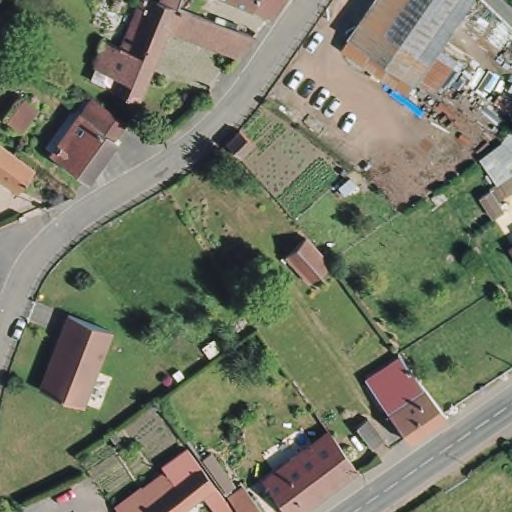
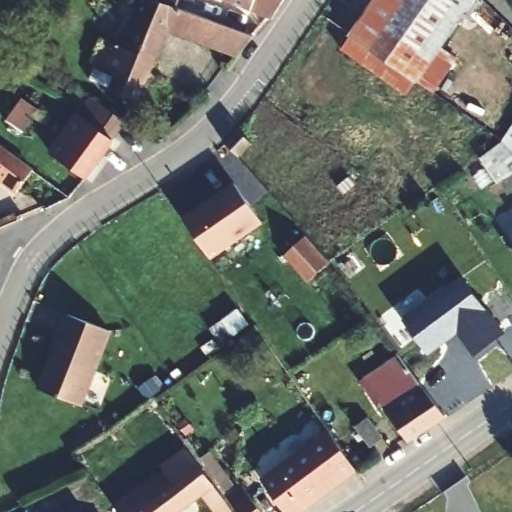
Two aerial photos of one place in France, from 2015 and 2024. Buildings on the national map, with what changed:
unchanged [(141,2),(151,5),(153,0),(172,0),(168,11),(245,39),(251,41),(236,61),(158,34),(128,105),(102,95),(109,78),(85,68),(95,45),(118,55),(141,2)]
unchanged [(264,21),(215,0),(277,0),(269,12),(264,21)]
unchanged [(368,48),(348,34),(373,0),(467,0),(474,5),(441,49),(457,62),(432,95),(416,83),(368,48)]
unchanged [(81,100),(118,124),(95,157),(59,132),(81,100)]
unchanged [(0,127),(0,125),(15,101),(29,111),(13,135),(0,127)]
unchanged [(32,152),(16,176),(0,165),(0,131),(32,152)]
unchanged [(43,155),(59,132),(95,157),(80,180),(43,155)]
unchanged [(233,132),(246,147),(231,159),(218,145),(233,132)]
unchanged [(512,137),(512,194),(504,199),(478,158),(512,137)]
new [(209,256),(184,221),(188,218),(186,215),(234,182),(261,221),(209,256)]
unchanged [(329,263),(308,280),(286,254),(306,236),(329,263)]
unchanged [(512,245),(512,248),(511,246),(512,245)]
new [(505,333),(474,356),(458,332),(429,355),(403,320),(461,278),(505,333)]
unchanged [(73,314),(115,333),(82,406),(41,387),(73,314)]
unchanged [(403,427),(371,381),(394,364),(401,372),(413,364),(440,402),(403,427)]
unchanged [(295,511),(264,468),(293,446),(323,426),(331,420),(362,463),(295,511)]
unchanged [(348,434),(363,422),(378,442),(361,454),(348,434)]
unchanged [(162,456),(187,438),(231,500),(225,504),(219,496),(213,500),(204,488),(171,512),(163,512),(141,479),(164,460),(162,456)]
unchanged [(163,512),(127,512),(117,496),(141,479),(163,512)]
unchanged [(248,507),(252,512),(242,512),(248,507)]

